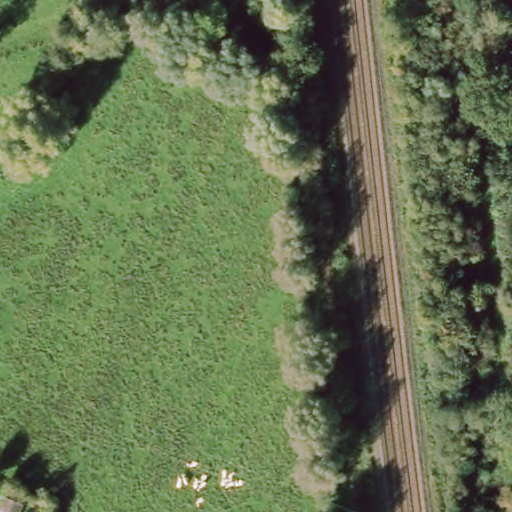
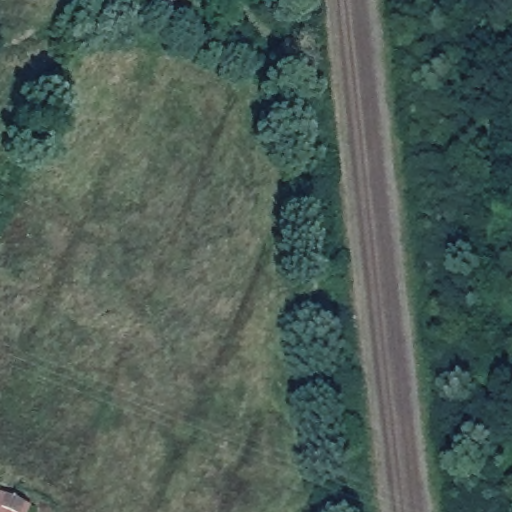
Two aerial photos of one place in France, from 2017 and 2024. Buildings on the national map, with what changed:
unchanged [(160,6),(158,0),(179,0),(179,1),(160,6)]
unchanged [(26,505),(23,512),(7,512),(2,510),(8,497),(26,505)]

